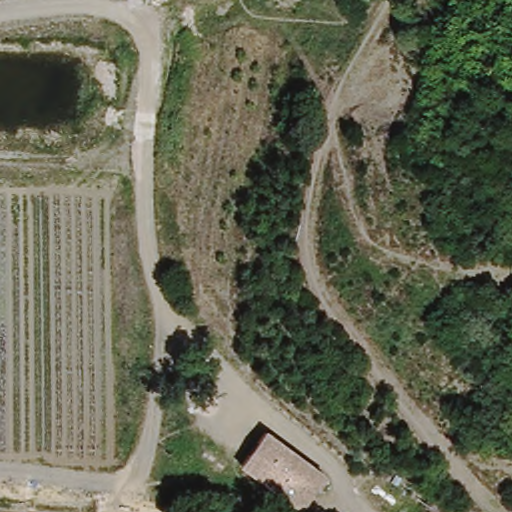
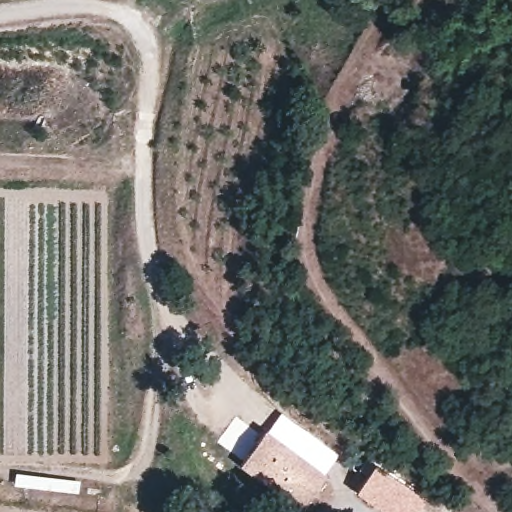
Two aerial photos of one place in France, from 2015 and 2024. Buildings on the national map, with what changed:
unchanged [(267,429),(325,469),(297,508),(243,462),(267,429)]
new [(372,466),(423,501),(417,512),(382,512),(355,495),(372,466)]

